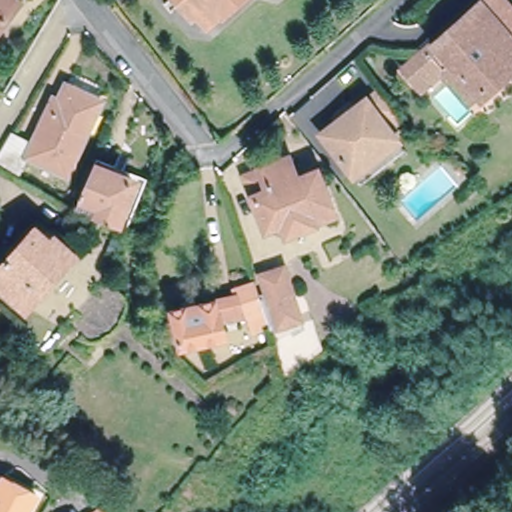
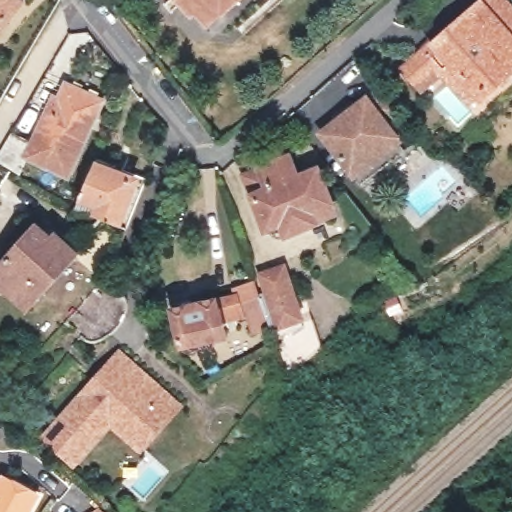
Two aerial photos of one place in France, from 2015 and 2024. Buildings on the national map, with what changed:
unchanged [(12,0),(21,6),(0,33),(0,0),(12,0)]
unchanged [(204,18),(188,0),(225,0),(219,5),(204,18)]
unchanged [(423,90),(407,72),(484,0),(503,0),(512,9),(512,70),(511,71),(509,68),(495,81),(497,83),(482,97),(480,94),(468,105),(440,74),(423,90)]
unchanged [(69,178),(26,160),(20,174),(0,166),(0,158),(12,138),(32,147),(41,127),(42,128),(48,114),(53,116),(65,88),(102,104),(90,132),(69,178)]
unchanged [(344,181),(314,143),(372,98),(402,135),(344,181)]
unchanged [(294,227),(290,216),(273,223),(252,172),(294,154),(302,174),(321,166),(333,197),(338,208),(294,227)]
unchanged [(100,168),(105,157),(124,166),(120,176),(144,186),(125,229),(82,210),(100,168)]
unchanged [(51,228),(59,235),(54,241),(71,256),(22,309),(0,290),(0,269),(35,231),(42,238),(51,228)]
unchanged [(265,293),(257,273),(279,266),(299,320),(285,325),(284,321),(268,326),(257,296),(265,293)]
unchanged [(72,338),(80,329),(99,308),(110,280),(125,296),(126,298),(127,302),(127,306),(126,311),(120,324),(114,330),(99,337),(88,337),(80,345),(72,338)]
unchanged [(268,326),(247,330),(244,315),(216,321),(220,336),(177,345),(170,309),(233,295),(232,287),(252,283),(257,296),(268,326)]
unchanged [(307,325),(305,317),(313,315),(321,346),(286,372),(275,335),(307,325)]
new [(185,405),(141,456),(110,428),(73,469),(41,436),(121,348),(185,405)]
unchanged [(2,481),(5,475),(22,484),(39,494),(29,512),(0,512),(0,480),(2,481)]
unchanged [(100,509),(103,512),(96,512),(100,509)]

